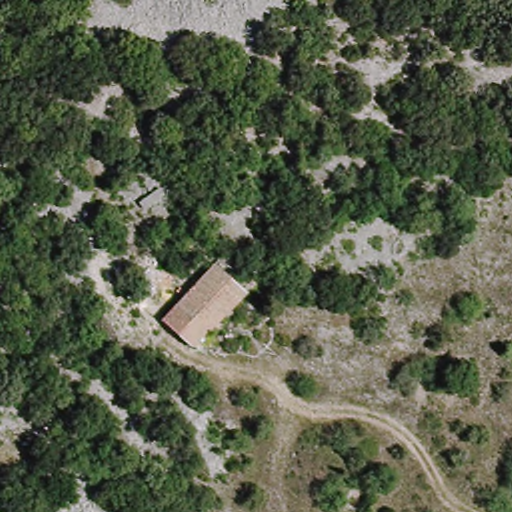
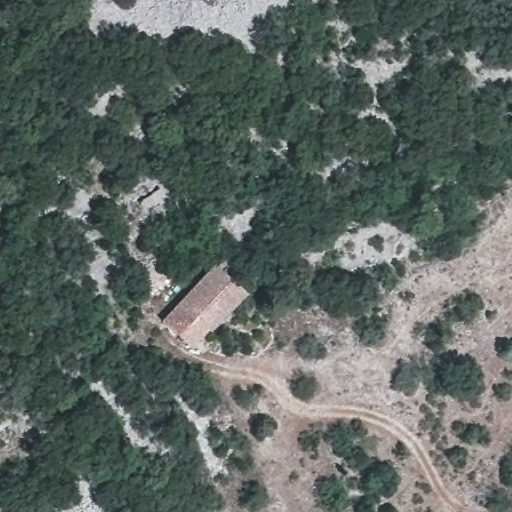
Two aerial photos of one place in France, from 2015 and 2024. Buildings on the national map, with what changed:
unchanged [(223,253),(261,280),(208,332),(196,324),(183,337),(169,323),(223,253)]

